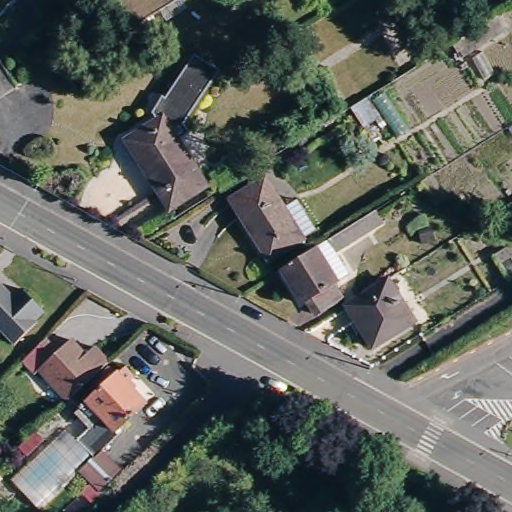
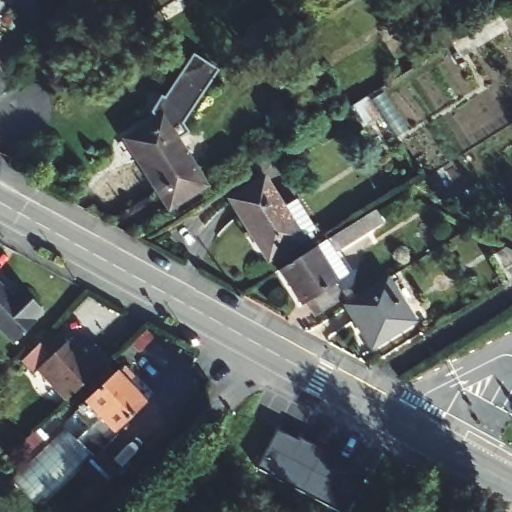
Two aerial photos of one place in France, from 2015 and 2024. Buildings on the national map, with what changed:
unchanged [(125,0),(171,0),(138,21),(125,0)]
unchanged [(450,46),(496,17),(502,27),(451,60),(444,50),(450,46)]
unchanged [(176,130),(167,116),(162,120),(157,111),(169,92),(195,51),(214,64),(217,66),(200,92),(176,130)]
unchanged [(15,81),(0,91),(0,55),(15,81)]
unchanged [(162,120),(167,116),(176,130),(205,176),(166,200),(157,185),(137,149),(130,139),(152,125),(162,120)]
unchanged [(235,159),(245,175),(220,190),(210,174),(235,159)]
unchanged [(265,179),(303,240),(267,263),(231,201),(265,179)]
unchanged [(308,295),(301,299),(280,265),(317,242),(328,235),(356,218),(363,229),(335,247),(348,269),(337,276),(335,277),(344,292),(317,310),(308,295)]
unchanged [(512,272),(510,268),(512,267),(512,272)]
unchanged [(388,275),(414,318),(372,345),(346,302),(388,275)]
unchanged [(0,324),(0,278),(15,294),(25,286),(46,310),(37,317),(40,320),(17,341),(0,324)]
unchanged [(70,397),(43,366),(37,370),(25,357),(50,334),(60,347),(73,336),(87,353),(97,345),(111,361),(70,397)]
unchanged [(80,436),(92,425),(77,410),(86,402),(87,402),(117,374),(145,404),(114,431),(116,433),(96,452),(80,436)]
new [(297,440),(299,436),(368,469),(345,512),(342,512),(257,468),(277,431),(297,440)]
unchanged [(122,469),(90,502),(78,491),(85,483),(75,472),(96,452),(100,448),(122,469)]

